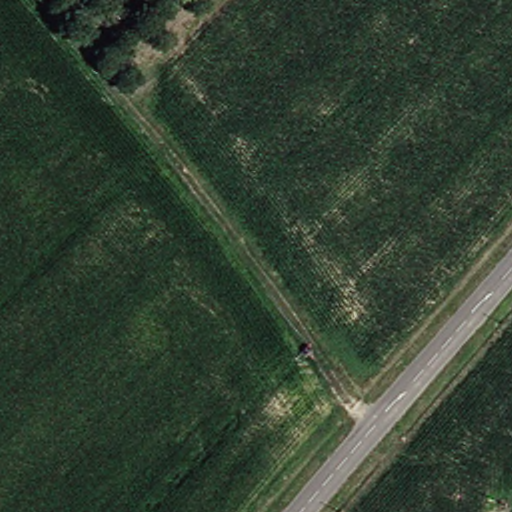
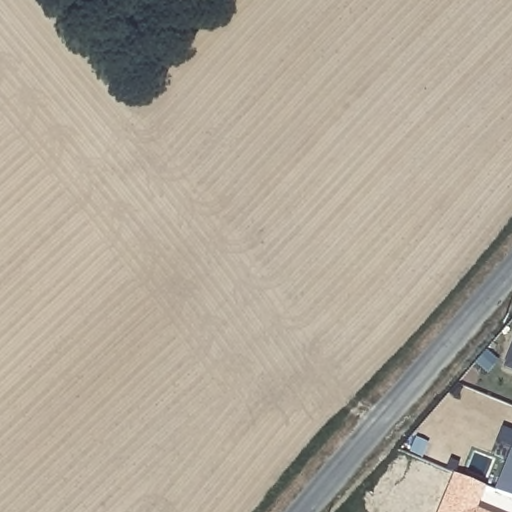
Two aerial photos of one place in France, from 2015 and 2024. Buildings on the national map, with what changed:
new [(507,368),(512,354),(512,370),(507,368)]
new [(494,490),(512,443),(512,498),(494,490)]
new [(486,486),(476,509),(482,512),(437,512),(451,474),(486,486)]

